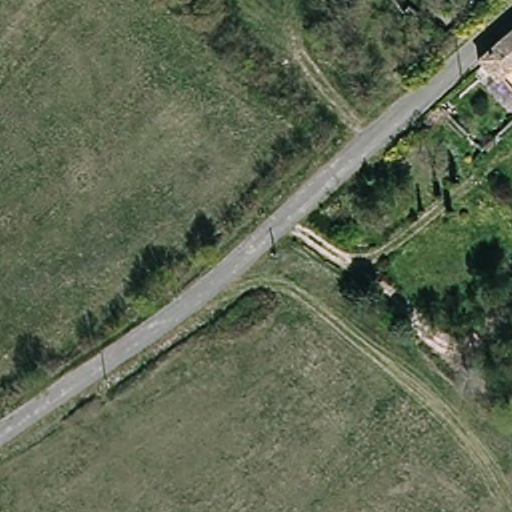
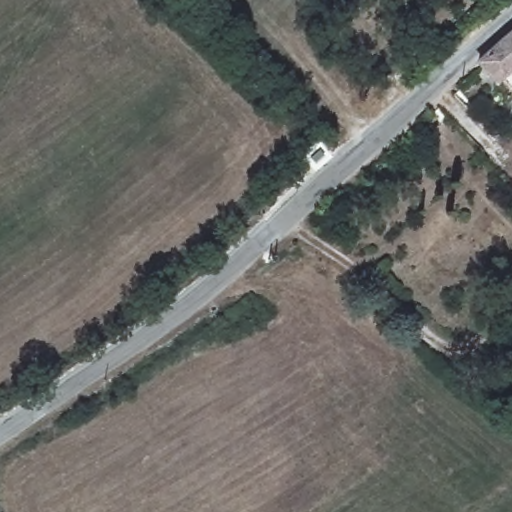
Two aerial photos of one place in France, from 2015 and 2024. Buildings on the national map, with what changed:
unchanged [(510,35),(512,33),(512,37),(510,35)]
unchanged [(511,70),(488,87),(475,74),(471,66),(510,35),(512,37),(512,72),(511,70)]
unchanged [(509,111),(512,108),(512,115),(509,111)]

